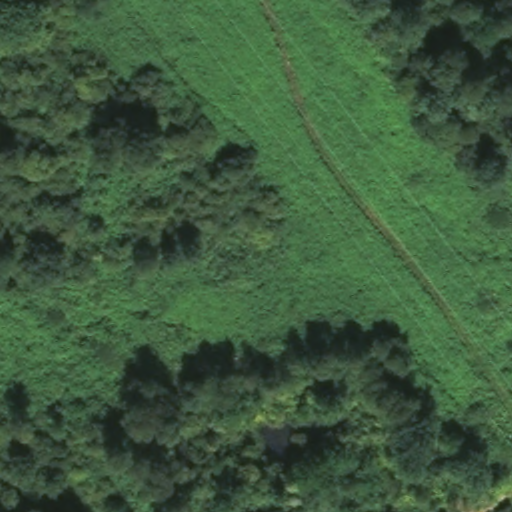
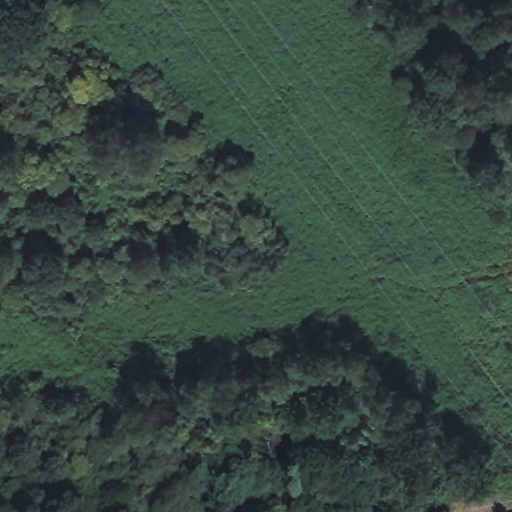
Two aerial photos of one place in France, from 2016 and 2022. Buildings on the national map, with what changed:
[]

